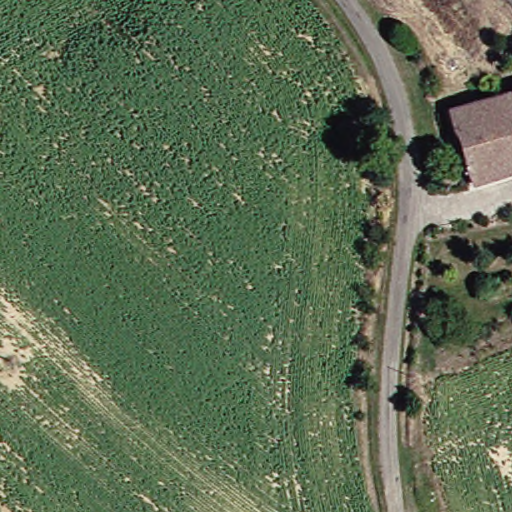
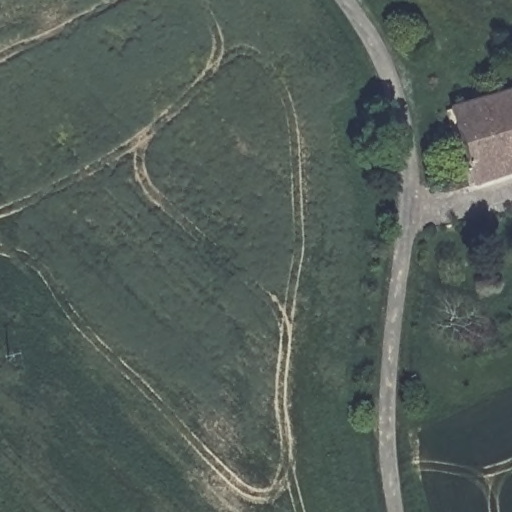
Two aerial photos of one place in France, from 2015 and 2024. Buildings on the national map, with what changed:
unchanged [(512,171),(471,185),(448,119),(445,112),(512,90),(512,171)]

